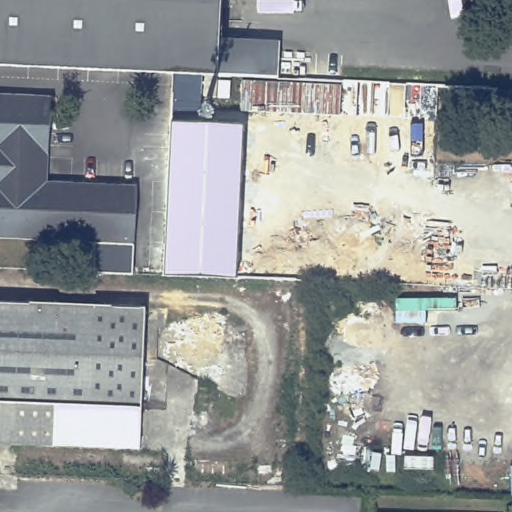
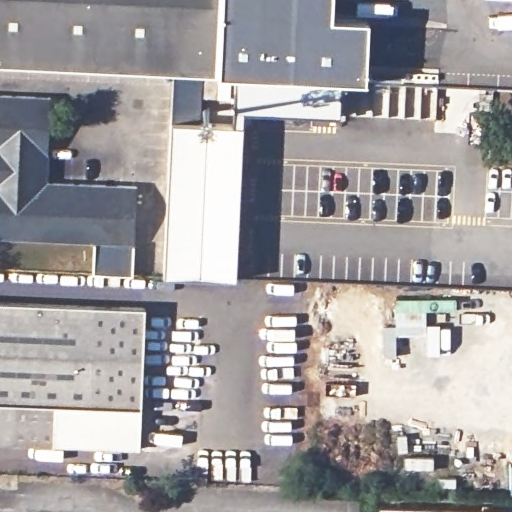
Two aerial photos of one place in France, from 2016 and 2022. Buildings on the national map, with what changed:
unchanged [(232,94),(204,93),(205,71),(174,69),(114,67),(0,61),(0,0),(220,0),(219,36),(282,39),(280,74),(218,71),(218,77),(232,77),(232,94)]
new [(369,20),(366,79),(280,74),(282,39),(219,36),(220,0),(332,0),(331,18),(369,20)]
unchanged [(203,71),(203,124),(241,125),(236,277),(165,274),(173,121),(176,69),(203,71)]
unchanged [(241,81),(329,83),(327,119),(240,114),(241,81)]
unchanged [(51,177),(140,181),(137,237),(97,235),(0,231),(0,91),(55,93),(51,177)]
unchanged [(137,237),(135,269),(102,267),(95,267),(97,235),(137,237)]
unchanged [(140,452),(0,447),(0,306),(145,311),(140,452)]

